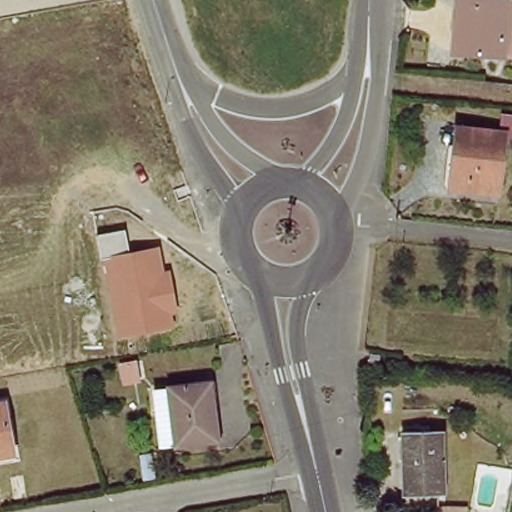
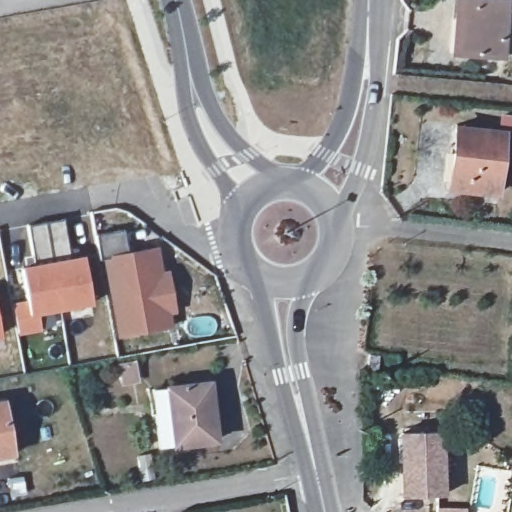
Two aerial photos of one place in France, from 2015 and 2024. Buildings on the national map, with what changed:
unchanged [(502,12),(502,0),(512,0),(512,12),(502,12)]
unchanged [(449,59),(456,7),(502,12),(495,63),(449,59)]
unchanged [(450,185),(458,130),(500,134),(504,117),(512,118),(512,140),(504,140),(497,189),(450,185)]
new [(38,316),(43,332),(20,337),(15,304),(29,300),(23,266),(36,264),(30,227),(65,220),(70,260),(85,257),(94,307),(38,316)]
unchanged [(163,273),(171,272),(177,314),(171,315),(173,330),(117,340),(104,260),(100,262),(95,236),(125,231),(128,254),(160,249),(163,273)]
unchanged [(370,353),(381,354),(379,376),(368,375),(370,353)]
unchanged [(157,427),(153,391),(167,390),(167,388),(211,383),(216,417),(220,445),(174,450),(174,448),(160,450),(157,427)]
unchanged [(16,457),(0,460),(0,408),(8,407),(16,457)]
unchanged [(396,411),(443,408),(448,496),(403,497),(396,411)]
unchanged [(472,508),(471,512),(441,512),(442,505),(472,508)]

